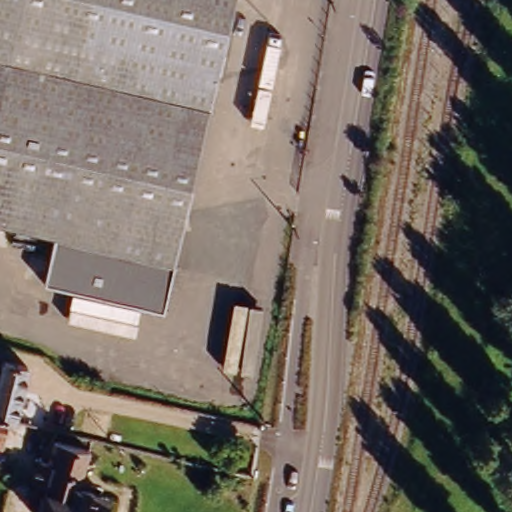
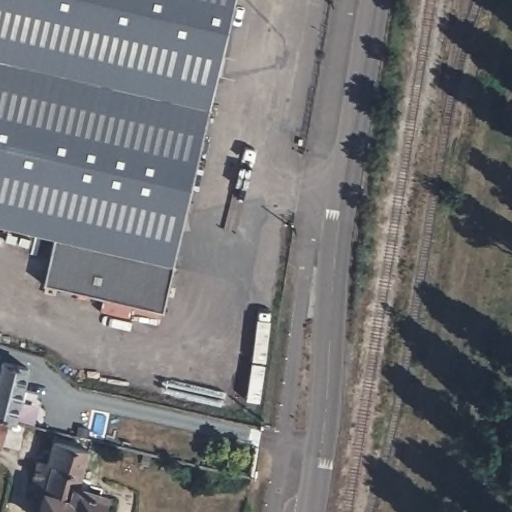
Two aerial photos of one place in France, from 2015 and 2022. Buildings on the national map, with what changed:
unchanged [(173,250),(167,272),(50,242),(23,235),(0,229),(0,0),(236,0),(173,250)]
unchanged [(156,318),(38,289),(50,242),(167,272),(156,318)]
unchanged [(13,420),(0,417),(0,385),(7,360),(32,366),(18,421),(13,420)]
unchanged [(6,446),(0,445),(0,417),(13,420),(6,446)]
unchanged [(50,481),(35,476),(42,454),(52,457),(59,436),(93,446),(82,483),(110,491),(104,512),(43,512),(41,512),(50,481)]

